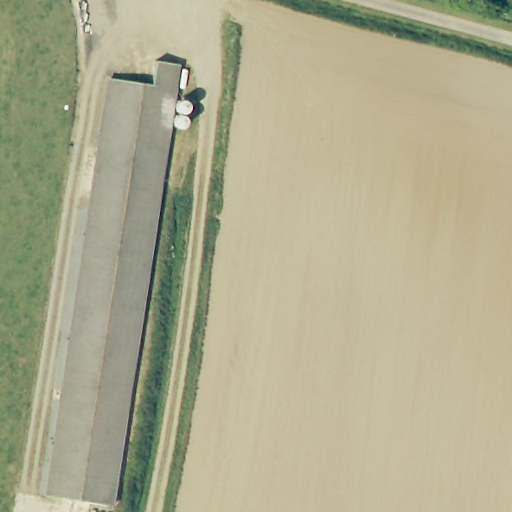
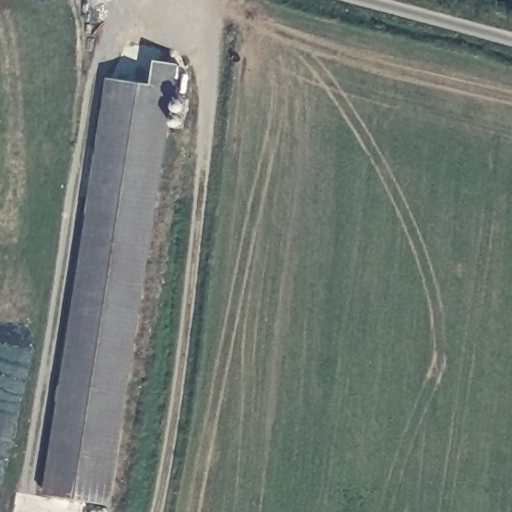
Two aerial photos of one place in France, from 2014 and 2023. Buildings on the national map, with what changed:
unchanged [(51,495),(115,77),(155,84),(159,60),(178,63),(112,505),(51,495)]
unchanged [(190,101),(186,126),(177,124),(181,99),(190,101)]

